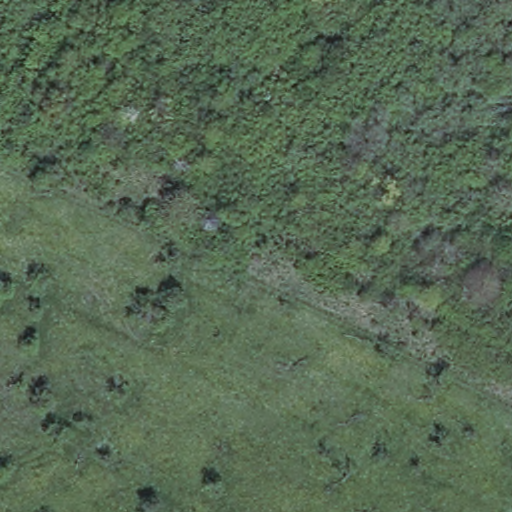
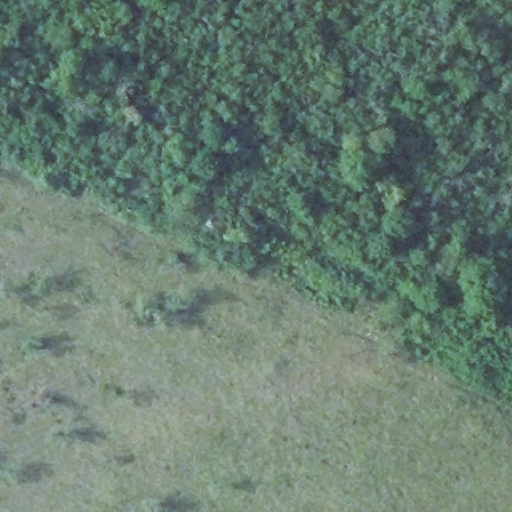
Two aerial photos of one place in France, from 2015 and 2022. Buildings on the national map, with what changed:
unchanged [(213,210),(220,220),(215,230),(203,231),(197,222),(201,212),(213,210)]

